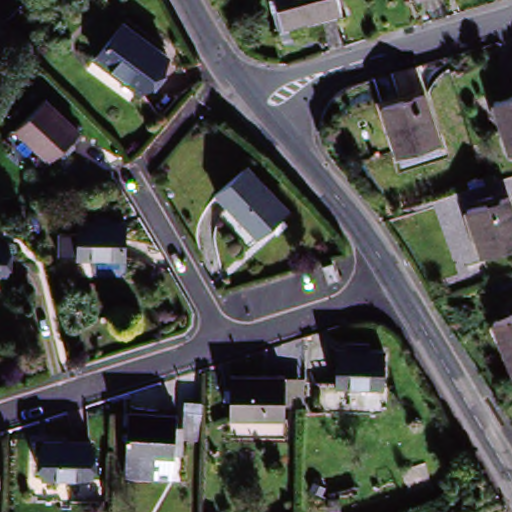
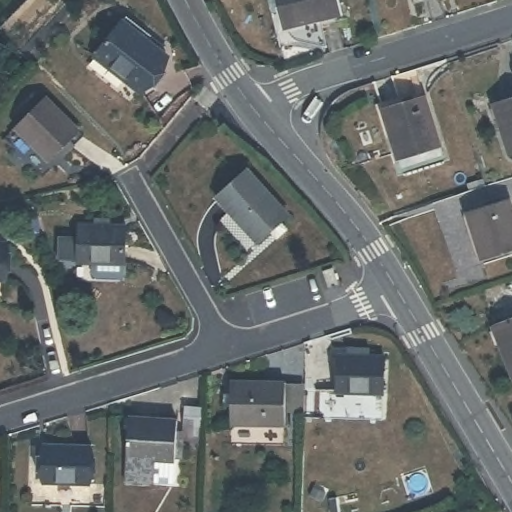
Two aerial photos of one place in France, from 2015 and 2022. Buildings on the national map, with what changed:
unchanged [(275,0),(336,0),(338,6),(280,19),(275,0)]
unchanged [(134,90),(100,61),(132,23),(166,52),(134,90)]
unchanged [(402,157),(384,105),(425,91),(443,144),(402,157)]
unchanged [(46,94),(82,126),(53,157),(18,125),(46,94)]
unchanged [(494,101),(512,96),(512,151),(511,151),(494,101)]
unchanged [(214,202),(246,174),(285,216),(253,245),(214,202)]
unchanged [(465,212),(506,197),(512,213),(512,248),(482,259),(465,212)]
unchanged [(80,265),(78,226),(122,224),(124,263),(80,265)]
unchanged [(0,251),(2,281),(0,281),(0,251)]
unchanged [(512,313),(512,374),(507,376),(485,325),(512,313)]
unchanged [(335,391),(337,354),(386,356),(384,394),(335,391)]
unchanged [(231,423),(231,381),(278,381),(278,383),(298,383),(299,411),(279,411),(279,423),(231,423)]
unchanged [(178,406),(204,408),(202,444),(177,443),(178,406)]
unchanged [(124,484),(124,419),(172,419),(172,463),(153,463),(154,483),(124,484)]
unchanged [(98,448),(97,486),(54,485),(55,447),(98,448)]

